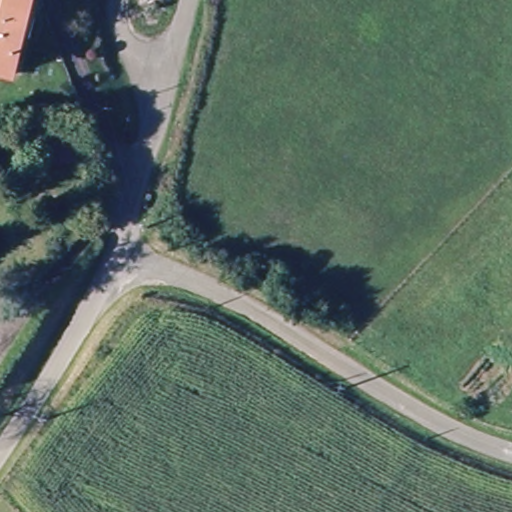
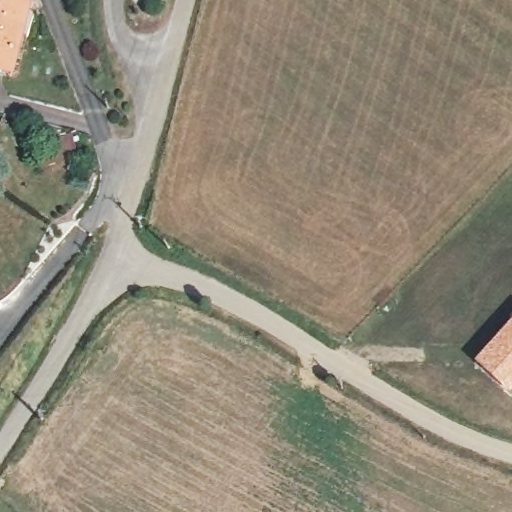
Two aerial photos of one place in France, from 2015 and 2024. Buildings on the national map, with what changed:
unchanged [(0,62),(0,0),(47,0),(29,71),(0,62)]
new [(512,323),(512,393),(510,396),(476,364),(512,323)]

